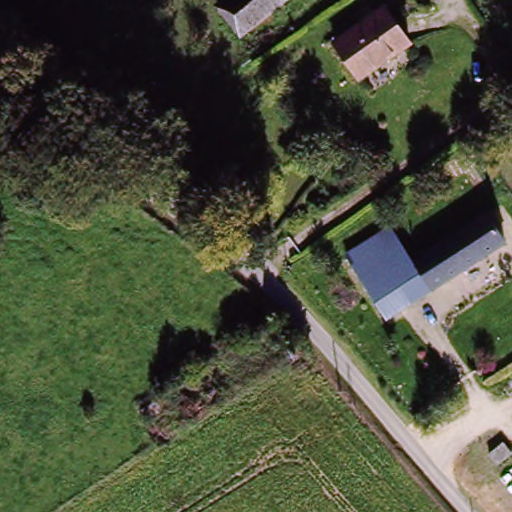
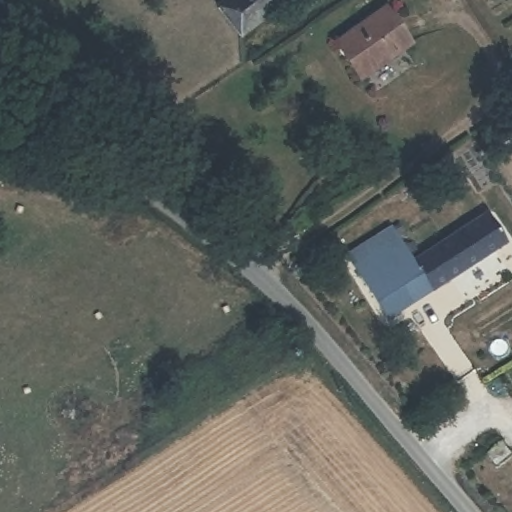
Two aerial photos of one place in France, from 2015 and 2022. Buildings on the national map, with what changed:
unchanged [(217,1),(218,0),(281,0),(251,21),(238,30),(217,1)]
unchanged [(408,41),(357,74),(339,47),(388,14),(408,41)]
unchanged [(428,279),(412,256),(484,209),(502,234),(428,279)]
unchanged [(382,308),(353,268),(399,238),(412,256),(428,279),(382,308)]
unchanged [(507,459),(491,471),(481,459),(496,446),(507,459)]

